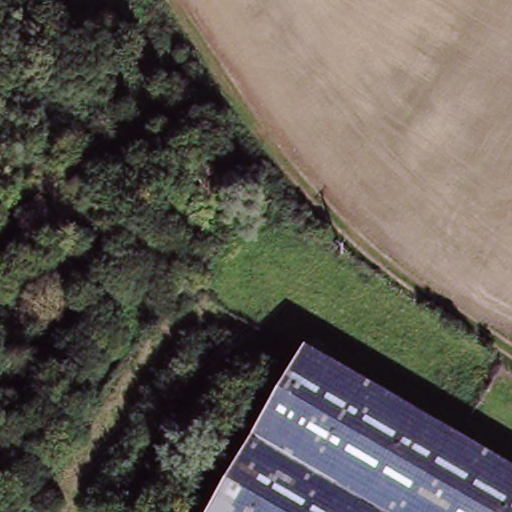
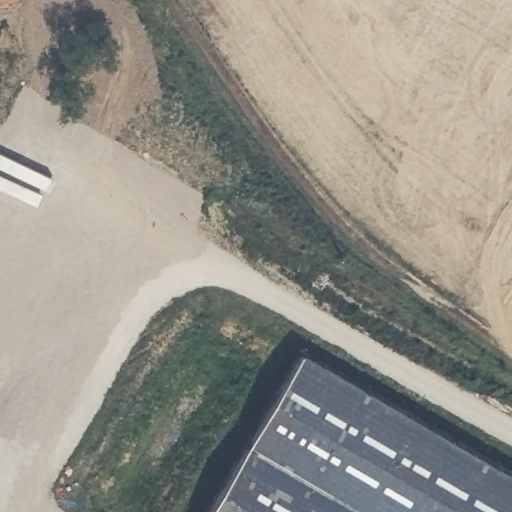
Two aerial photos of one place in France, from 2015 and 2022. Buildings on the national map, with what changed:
unchanged [(299,348),(512,473),(512,512),(202,512),(299,348)]

